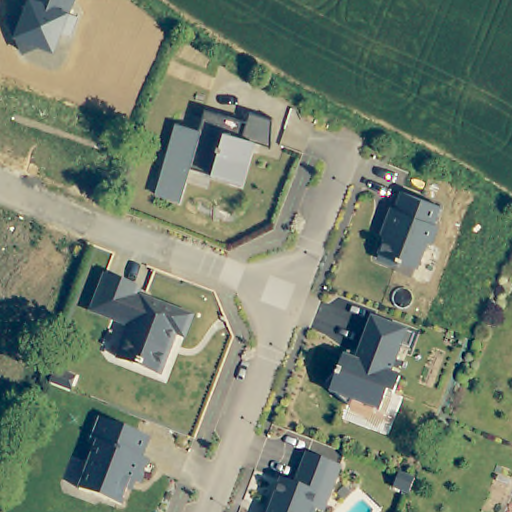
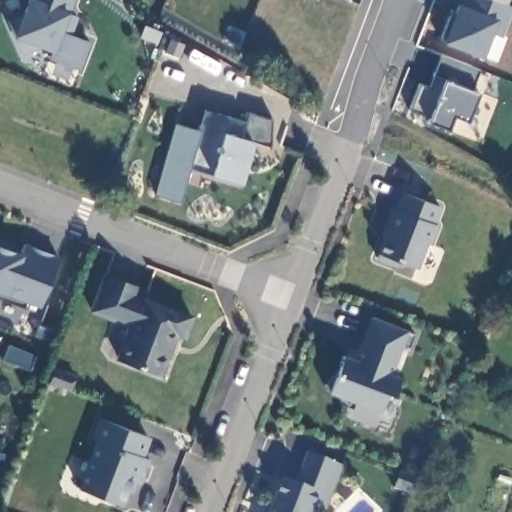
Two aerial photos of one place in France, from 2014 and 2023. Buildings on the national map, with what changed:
unchanged [(79,17),(72,37),(62,34),(55,55),(38,47),(21,55),(13,37),(26,0),(76,0),(71,14),(79,17)]
new [(314,0),(319,0),(318,2),(314,0)]
new [(363,0),(360,7),(343,0),(363,0)]
new [(501,36),(491,32),(482,57),(440,41),(449,17),(454,18),(461,0),(495,0),(512,7),(501,36)]
new [(471,90),(477,92),(465,122),(449,117),(445,129),(404,116),(416,84),(423,87),(431,79),(440,55),(478,67),(471,90)]
unchanged [(231,181),(213,176),(189,169),(179,202),(157,196),(178,127),(199,133),(201,126),(206,110),(219,115),(247,122),(250,113),(273,120),(273,121),(272,146),(271,148),(252,142),(247,161),(240,184),(231,181)]
unchanged [(388,228),(384,227),(391,208),(395,209),(402,192),(439,206),(432,224),(436,225),(429,244),(425,242),(415,268),(397,261),(395,266),(376,258),(388,228)]
new [(11,251),(22,254),(26,243),(61,257),(40,306),(26,301),(24,307),(0,299),(0,240),(13,245),(11,251)]
unchanged [(184,336),(176,333),(161,374),(119,358),(131,326),(92,311),(105,276),(140,288),(136,296),(192,317),(184,336)]
unchanged [(329,391),(329,390),(322,383),(339,365),(343,355),(355,360),(371,317),(414,333),(409,347),(400,344),(389,373),(399,377),(393,393),(386,391),(379,410),(351,399),(346,405),(332,392),(329,391)]
unchanged [(140,456),(150,459),(140,483),(131,480),(121,505),(79,489),(98,441),(93,439),(101,418),(148,436),(140,456)]
unchanged [(314,508),(313,512),(265,512),(269,504),(272,505),(282,479),(295,484),(307,453),(340,466),(325,506),(323,512),(314,508)]
unchanged [(415,478),(409,494),(393,488),(399,472),(415,478)]

